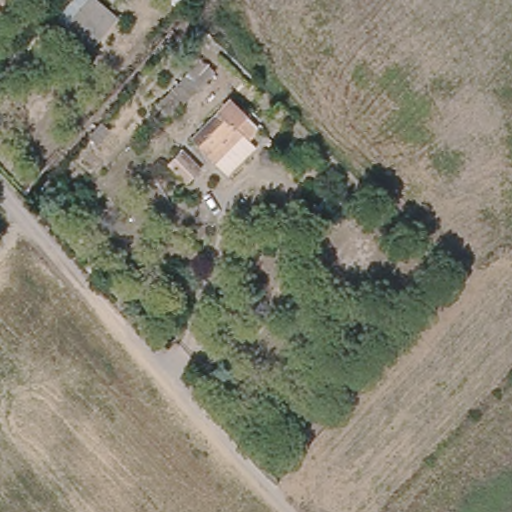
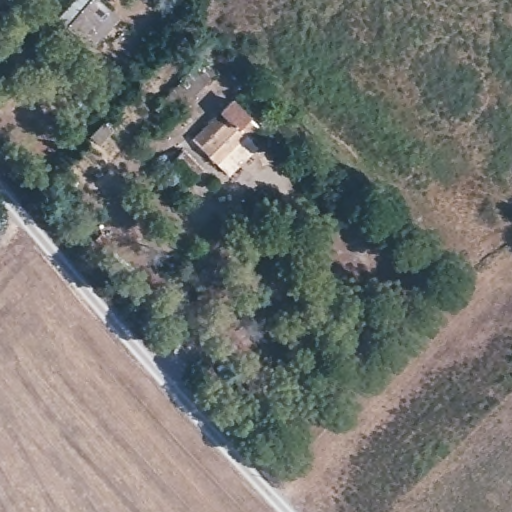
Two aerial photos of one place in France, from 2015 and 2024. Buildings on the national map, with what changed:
unchanged [(75,0),(102,0),(122,18),(92,52),(59,20),(75,0)]
unchanged [(202,151),(231,122),(238,129),(248,120),(263,135),(252,147),(246,142),(220,167),(202,151)]

